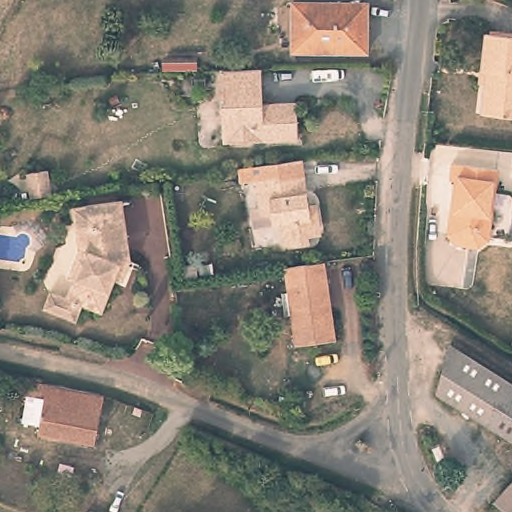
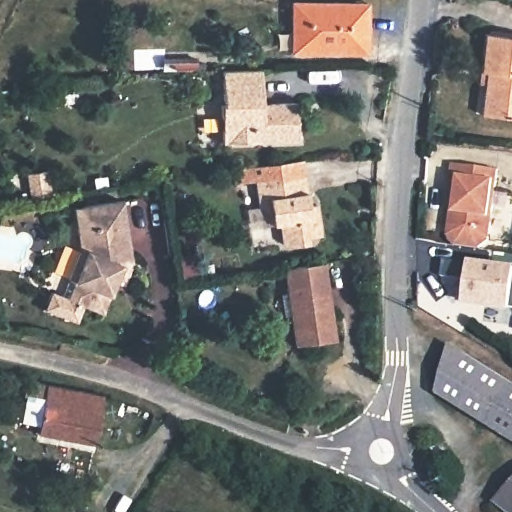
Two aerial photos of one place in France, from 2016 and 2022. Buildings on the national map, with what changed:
unchanged [(369,15),(369,50),(294,49),(294,0),(364,0),(364,14),(369,15)]
unchanged [(512,33),(512,114),(480,110),(483,69),(479,69),(481,29),(512,33)]
unchanged [(289,104),(297,104),(297,141),(286,141),(220,143),(220,105),(224,105),(224,69),(264,69),(265,104),(273,104),(289,104)]
unchanged [(451,240),(448,237),(454,180),(449,180),(450,164),(497,168),(489,239),(480,248),(455,244),(451,240)]
unchanged [(23,169),(42,167),(46,192),(38,193),(26,194),(23,169)]
unchanged [(289,174),(302,173),(309,218),(317,217),(320,239),(315,239),(316,249),(309,250),(310,255),(310,257),(291,260),(288,258),(283,255),(280,237),(273,237),(271,217),(260,219),(257,195),(241,197),(239,181),(289,174)]
unchanged [(72,214),(79,214),(122,208),(127,243),(77,249),(75,233),(72,214)]
unchanged [(46,315),(52,299),(66,304),(85,258),(78,255),(77,249),(127,243),(129,269),(123,269),(103,318),(84,311),(79,327),(46,315)]
new [(463,304),(465,280),(439,275),(443,259),(468,263),(469,259),(512,265),(512,307),(512,309),(463,304)]
unchanged [(335,344),(296,349),(289,301),(288,297),(285,273),(325,268),(328,289),(328,292),(335,342),(335,344)]
unchanged [(442,349),(512,388),(512,438),(435,394),(442,349)]
unchanged [(103,394),(95,442),(40,432),(46,397),(34,395),(36,382),(103,394)]
unchanged [(512,481),(512,510),(497,499),(512,481)]

